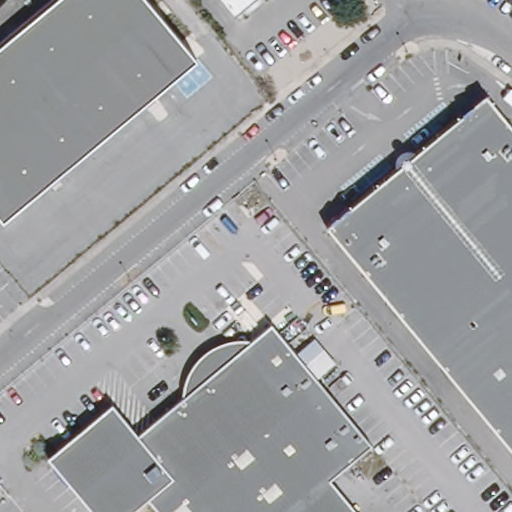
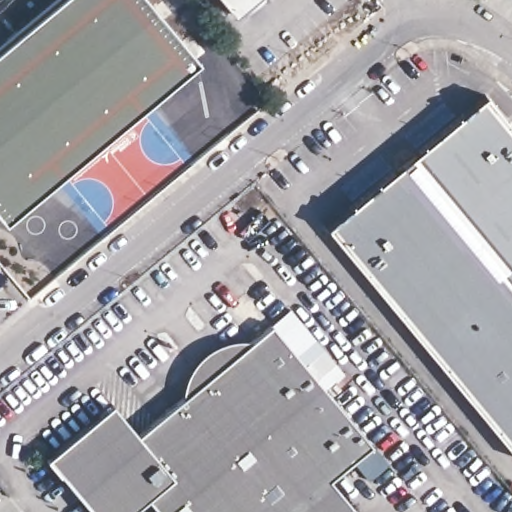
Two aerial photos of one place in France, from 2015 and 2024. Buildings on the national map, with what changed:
unchanged [(5,216),(0,209),(0,12),(2,11),(5,7),(12,1),(12,0),(148,0),(196,58),(5,216)]
unchanged [(216,0),(251,0),(231,17),(216,0)]
unchanged [(512,118),(512,439),(332,222),(489,91),(512,118)]
unchanged [(333,477),(362,512),(163,512),(150,497),(146,501),(132,512),(97,512),(95,510),(50,456),(115,402),(141,433),(186,396),(255,338),(275,321),(376,442),(333,477)]
unchanged [(244,338),(255,338),(186,396),(186,388),(189,379),(192,371),(196,363),(202,356),(207,351),(213,346),(219,343),(226,340),(236,338),(244,338)]

